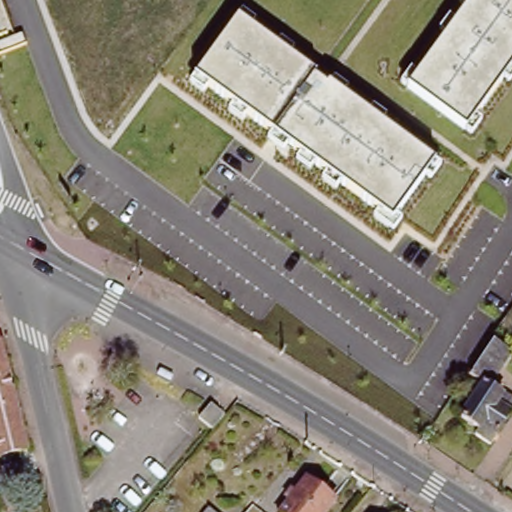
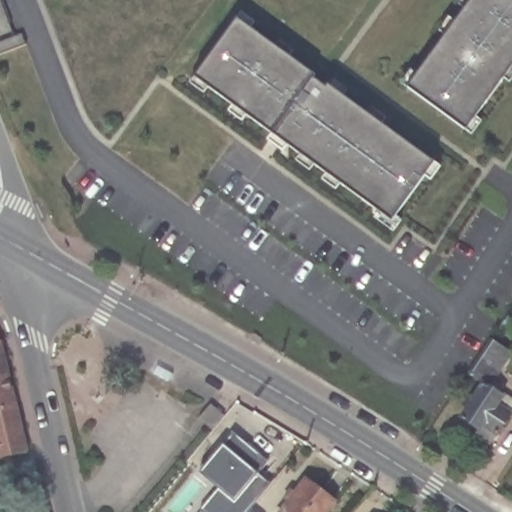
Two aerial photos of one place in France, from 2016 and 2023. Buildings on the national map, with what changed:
unchanged [(471,0),(512,0),(512,61),(465,126),(409,85),(471,0)]
unchanged [(239,18),(433,163),(391,220),(195,76),(239,18)]
unchanged [(493,383),(512,396),(512,414),(494,441),(481,431),(484,426),(466,414),(487,382),(472,371),(497,332),(500,328),(512,336),(512,352),(493,383)]
unchanged [(25,447),(0,453),(0,345),(25,447)]
unchanged [(220,402),(228,408),(220,416),(213,410),(220,402)]
new [(205,512),(201,509),(219,488),(201,473),(235,431),(270,461),(260,473),(273,483),(248,512),(205,512)]
unchanged [(334,499),(323,512),(276,512),(306,476),(334,499)]

